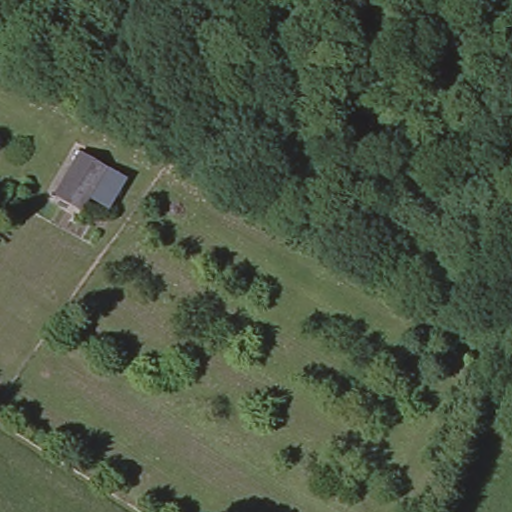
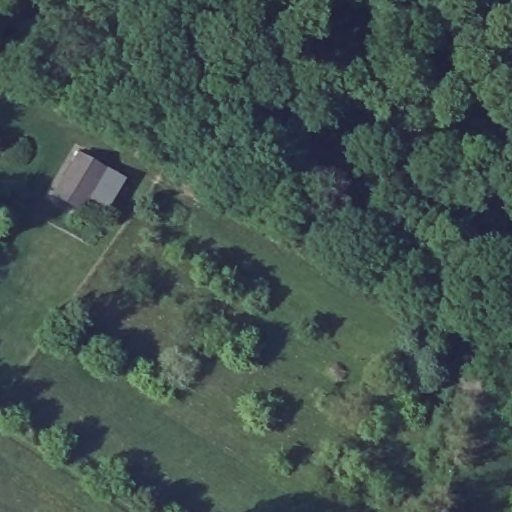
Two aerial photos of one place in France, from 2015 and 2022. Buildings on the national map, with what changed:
unchanged [(133,174),(112,209),(87,198),(78,214),(51,193),(77,149),(133,174)]

